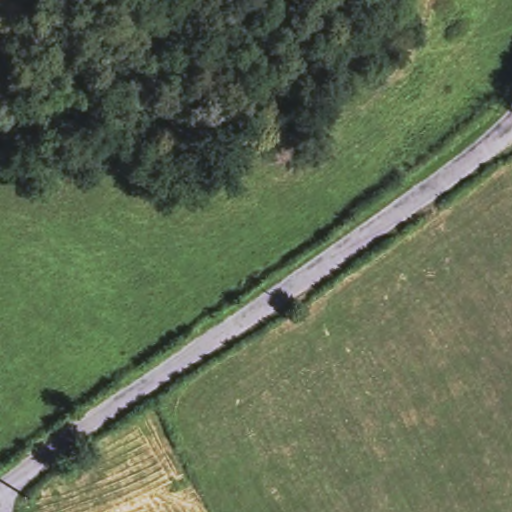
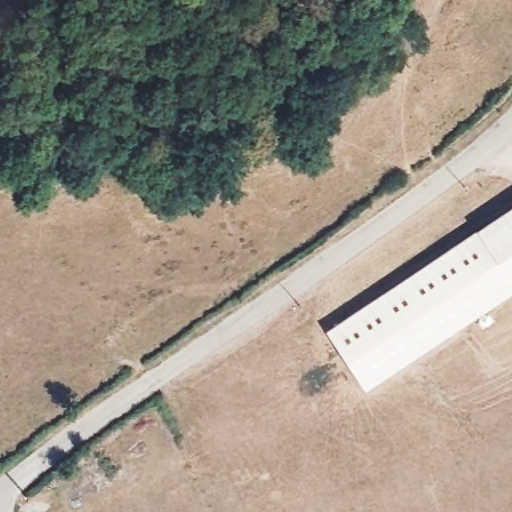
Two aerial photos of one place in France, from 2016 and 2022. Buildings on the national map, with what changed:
new [(512,293),(365,391),(326,333),(512,210),(512,293)]

